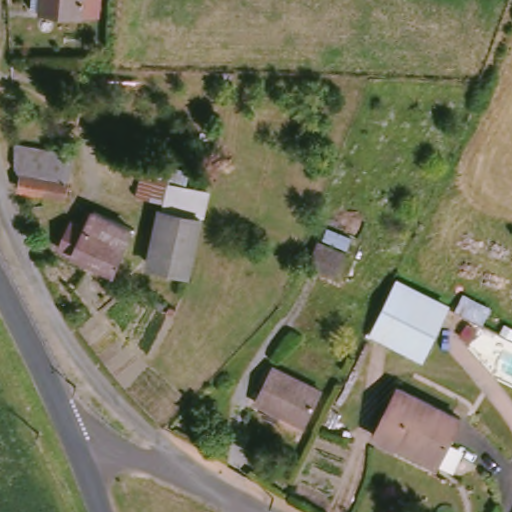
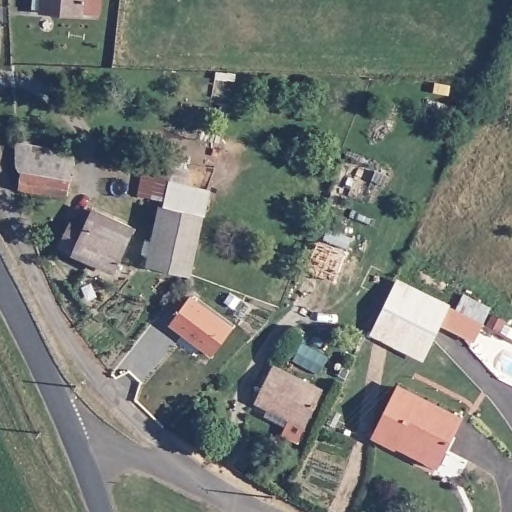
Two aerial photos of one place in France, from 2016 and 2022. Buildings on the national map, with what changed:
unchanged [(106,17),(33,18),(33,0),(106,0),(106,17)]
unchanged [(17,169),(15,142),(77,155),(67,198),(22,189),(17,169)]
unchanged [(147,269),(162,206),(167,196),(130,194),(130,176),(115,172),(120,159),(200,171),(196,185),(217,189),(208,218),(197,282),(147,269)]
unchanged [(74,223),(88,229),(97,213),(135,230),(115,275),(62,251),(74,223)]
unchanged [(350,254),(341,279),(312,267),(322,242),(350,254)]
unchanged [(397,286),(448,311),(427,357),(376,331),(397,286)]
new [(170,326),(192,296),(233,326),(212,356),(170,326)]
unchanged [(275,368),(325,395),(309,428),(257,404),(275,368)]
unchanged [(400,390),(464,421),(442,470),(398,449),(396,453),(375,443),(400,390)]

